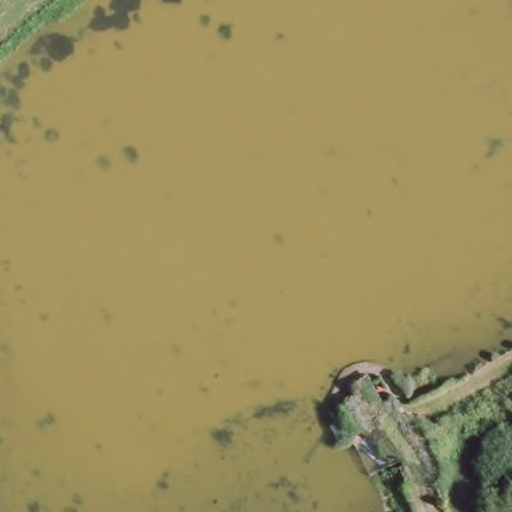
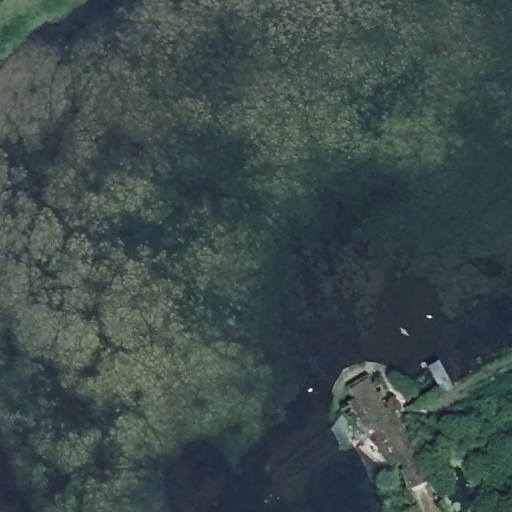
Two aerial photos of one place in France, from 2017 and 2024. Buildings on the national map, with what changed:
unchanged [(374,377),(433,471),(404,487),(366,425),(353,433),(336,403),(348,391),(374,377)]

